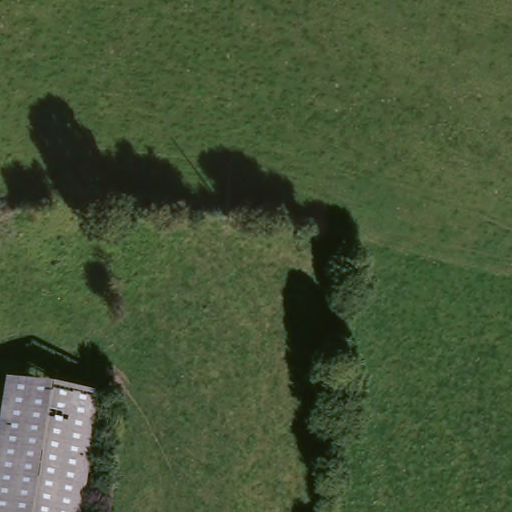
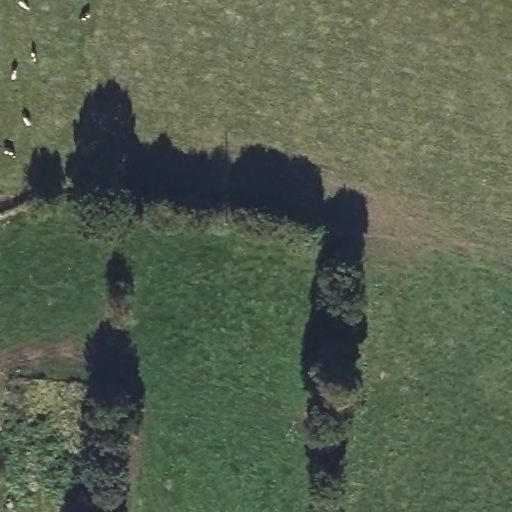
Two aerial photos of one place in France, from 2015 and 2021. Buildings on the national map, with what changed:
demolished [(6,377),(101,393),(83,512),(0,512),(0,415),(6,377)]

